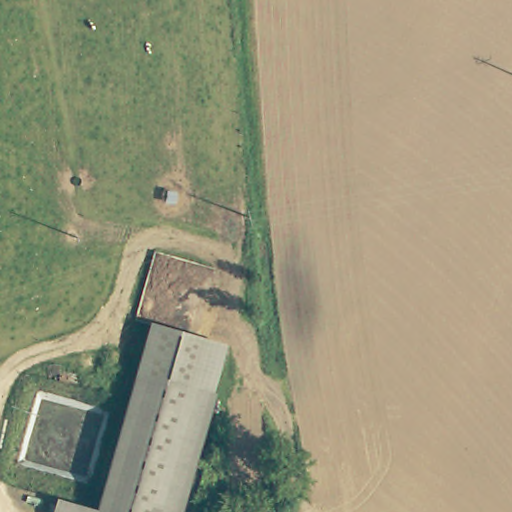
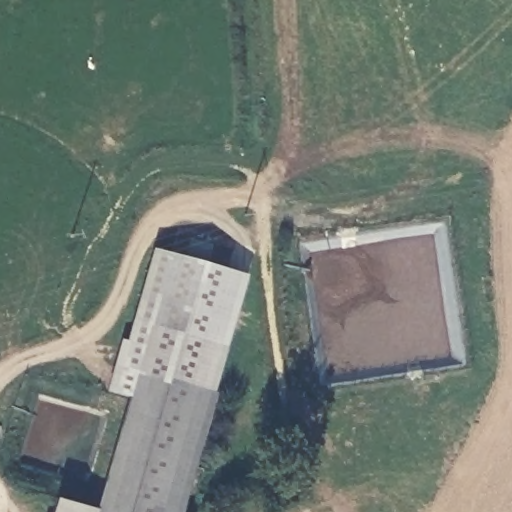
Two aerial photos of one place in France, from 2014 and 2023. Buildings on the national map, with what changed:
new [(226,347),(219,346),(143,329),(137,358),(135,370),(129,396),(107,391),(121,339),(127,341),(154,249),(246,276),(226,347)]
unchanged [(175,366),(137,358),(143,329),(219,346),(215,362),(213,375),(175,366)]

